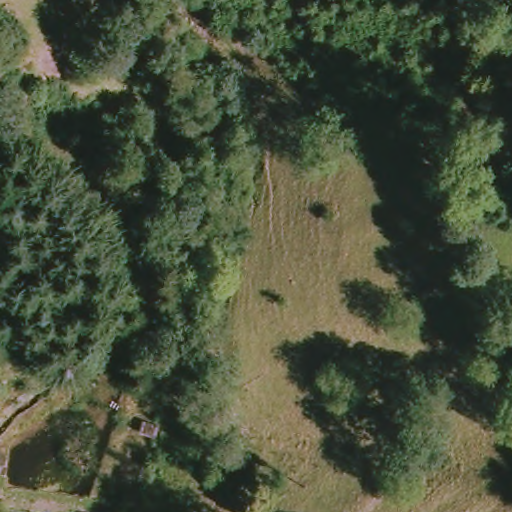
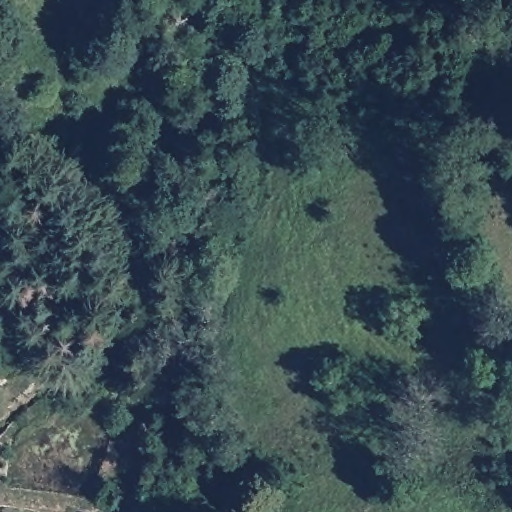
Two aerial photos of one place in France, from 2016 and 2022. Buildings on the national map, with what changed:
unchanged [(0,512),(0,511),(12,512),(0,512)]

